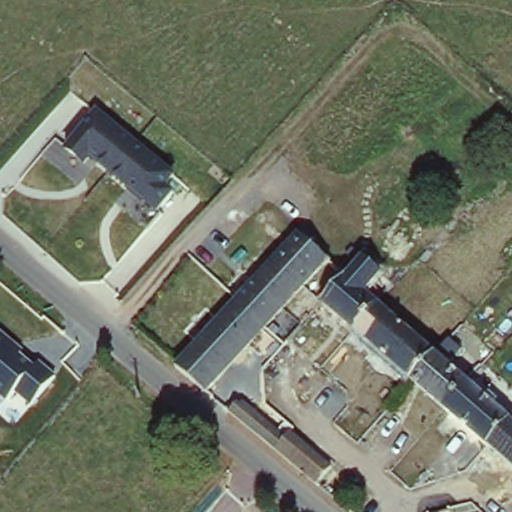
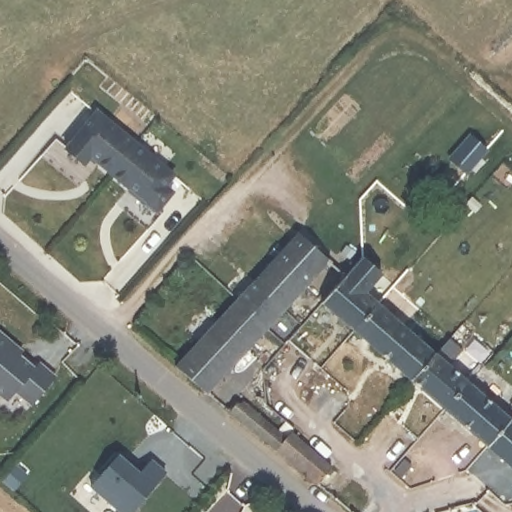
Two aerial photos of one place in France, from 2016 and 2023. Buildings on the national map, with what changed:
unchanged [(97,110),(177,175),(169,185),(177,192),(155,213),(90,160),(85,165),(64,150),(97,110)]
unchanged [(202,398),(168,369),(171,366),(303,222),(336,249),(202,398)]
unchanged [(364,283),(428,339),(444,353),(416,381),(325,305),(352,272),(364,283)]
unchanged [(32,406),(16,392),(5,402),(0,396),(0,332),(55,379),(32,406)]
unchanged [(512,462),(416,381),(444,353),(512,412),(512,462)]
unchanged [(242,395),(290,434),(295,429),(337,463),(320,485),(229,411),(242,395)]
new [(102,468),(114,454),(139,475),(150,462),(165,475),(133,512),(119,512),(90,488),(105,471),(102,468)]
unchanged [(390,503),(382,512),(350,512),(371,488),(390,503)]

